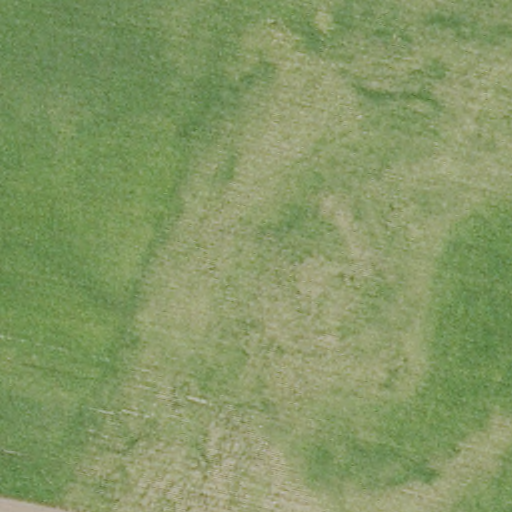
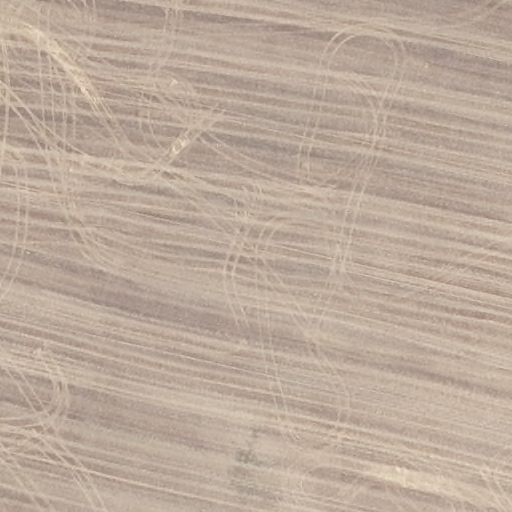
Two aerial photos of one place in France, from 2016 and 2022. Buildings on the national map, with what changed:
[]

